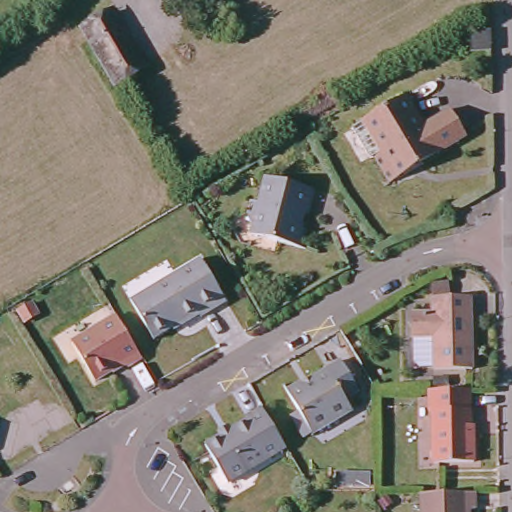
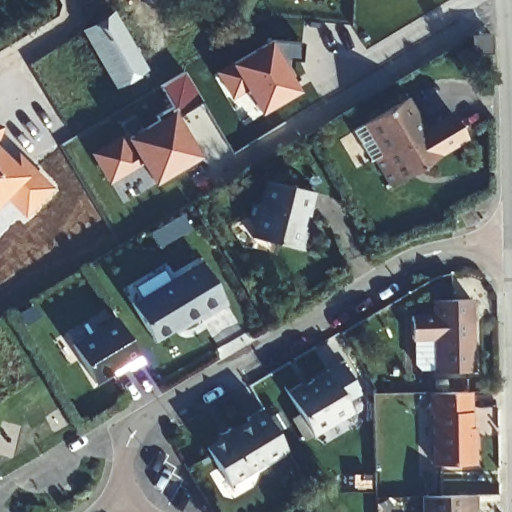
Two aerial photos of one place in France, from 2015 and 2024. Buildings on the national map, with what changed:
unchanged [(111,79),(87,37),(80,25),(108,9),(115,21),(139,62),(111,79)]
unchanged [(490,52),(472,52),(472,35),(490,34),(490,52)]
new [(268,39),(299,91),(257,115),(242,89),(227,97),(215,75),(232,64),(268,39)]
new [(274,39),(302,42),(300,60),(292,58),(290,64),(298,77),(293,81),(270,42),(274,39)]
new [(122,131),(126,135),(171,107),(175,103),(160,85),(185,70),(201,100),(177,115),(200,156),(152,184),(140,163),(108,182),(90,151),(122,131)]
unchanged [(402,165),(403,167),(385,178),(369,153),(378,147),(360,117),(398,95),(417,124),(445,107),(459,129),(402,165)]
new [(4,126),(0,134),(0,124),(4,126)]
new [(7,194),(0,201),(0,148),(11,159),(19,152),(55,187),(27,217),(7,194)]
unchanged [(247,199),(255,200),(262,176),(308,186),(302,209),(297,209),(295,220),(298,221),(297,226),(301,227),(297,245),(265,237),(248,233),(250,221),(243,211),(245,205),(247,199)]
unchanged [(197,312),(153,336),(132,297),(187,266),(202,257),(228,302),(213,310),(200,317),(197,312)]
unchanged [(422,333),(415,333),(415,310),(437,309),(436,295),(473,294),(475,365),(438,365),(422,366),(422,333)]
unchanged [(127,363),(125,360),(95,377),(72,339),(117,313),(141,355),(127,363)]
unchanged [(305,428),(280,386),(295,376),(297,379),(322,364),(347,403),(305,428)]
unchanged [(460,428),(463,427),(463,458),(425,458),(425,408),(420,408),(420,387),(460,387),(460,428)]
unchanged [(280,443),(222,478),(200,443),(216,432),(213,429),(222,423),(225,428),(243,416),(242,412),(256,404),(280,443)]
new [(310,452),(298,431),(307,426),(320,447),(310,452)]
unchanged [(420,495),(472,493),(472,511),(465,511),(465,512),(420,512),(420,495)]

